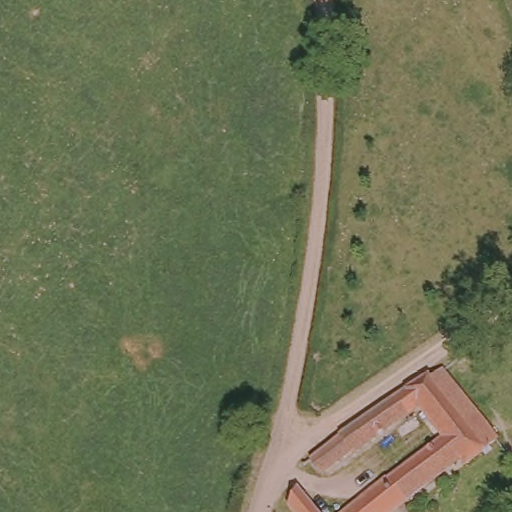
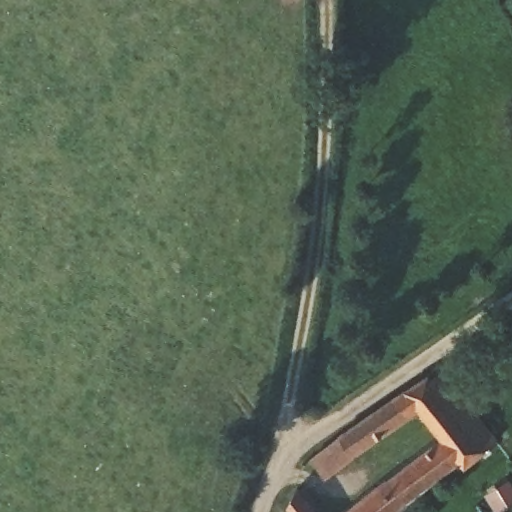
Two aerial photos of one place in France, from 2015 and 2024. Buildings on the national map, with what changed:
unchanged [(355,457),(352,453),(320,475),(314,465),(426,386),(430,391),(443,381),(506,441),(503,443),(470,467),(466,463),(462,466),(460,468),(457,466),(445,476),(405,508),(401,512),(355,512),(444,441),(417,413),(355,457)]
demolished [(512,479),(512,512),(498,512),(482,490),(506,470),(512,479)]
unchanged [(293,512),(292,510),(300,489),(318,512),(293,512)]

